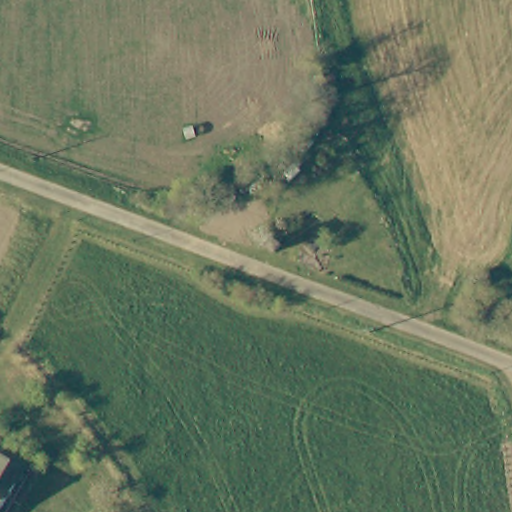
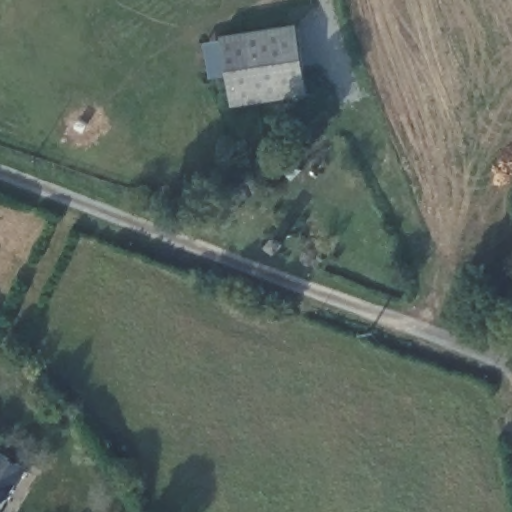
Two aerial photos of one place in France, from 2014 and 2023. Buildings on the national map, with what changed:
new [(308,96),(232,108),(221,36),(297,24),(308,96)]
unchanged [(285,233),(280,239),(264,235),(273,225),(285,233)]
new [(283,246),(278,252),(262,248),(272,238),(283,246)]
unchanged [(2,453),(26,467),(0,508),(0,456),(2,453)]

